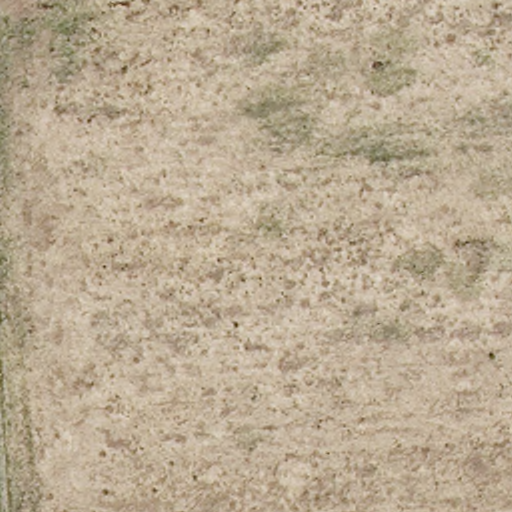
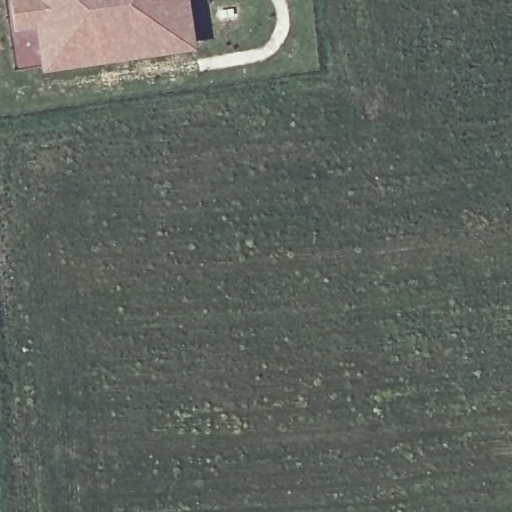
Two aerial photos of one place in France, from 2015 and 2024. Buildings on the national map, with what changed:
new [(186,14),(164,17),(165,21),(96,31),(99,57),(54,63),(48,18),(16,23),(13,0),(184,0),(186,14)]
new [(165,21),(164,17),(186,14),(190,44),(99,57),(96,31),(165,21)]

